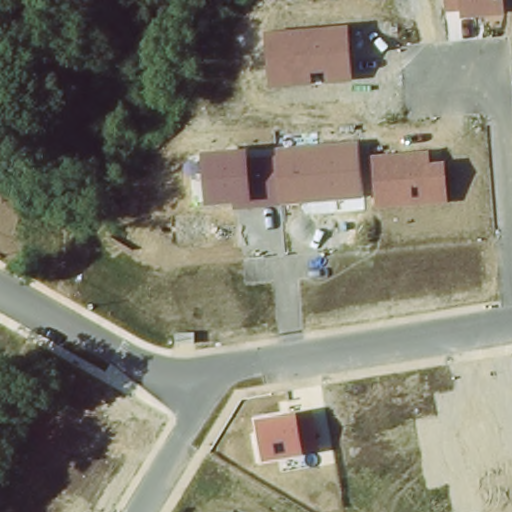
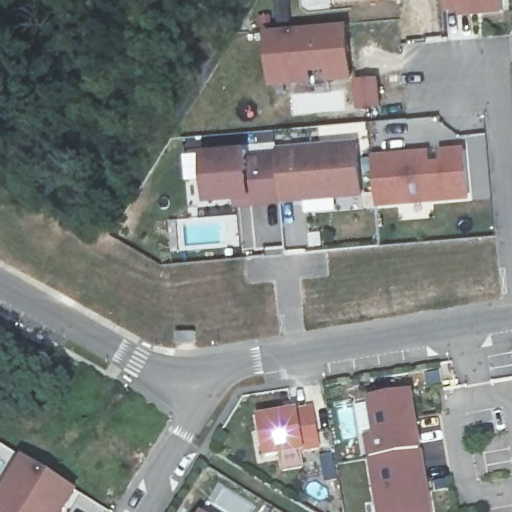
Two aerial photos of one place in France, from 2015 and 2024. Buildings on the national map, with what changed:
unchanged [(461,19),(460,12),(446,11),(445,0),(505,0),(506,16),(461,19)]
unchanged [(354,81),(325,83),(325,73),(312,74),(313,84),(270,87),(265,31),(350,25),(354,81)]
unchanged [(364,198),(236,209),(234,201),(206,203),(202,151),(246,149),(359,141),(364,198)]
unchanged [(431,161),(446,160),(450,201),(377,209),(371,155),(430,150),(431,161)]
new [(410,396),(429,512),(378,512),(368,441),(376,439),(370,402),(410,396)]
unchanged [(319,449),(264,459),(255,417),(314,409),(319,449)]
new [(60,512),(0,512),(0,496),(22,461),(73,491),(60,512)]

